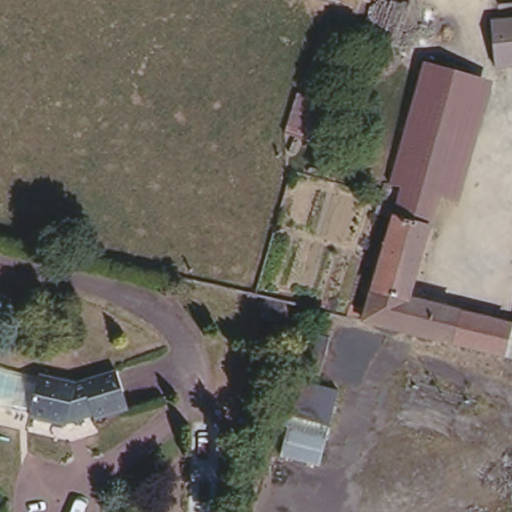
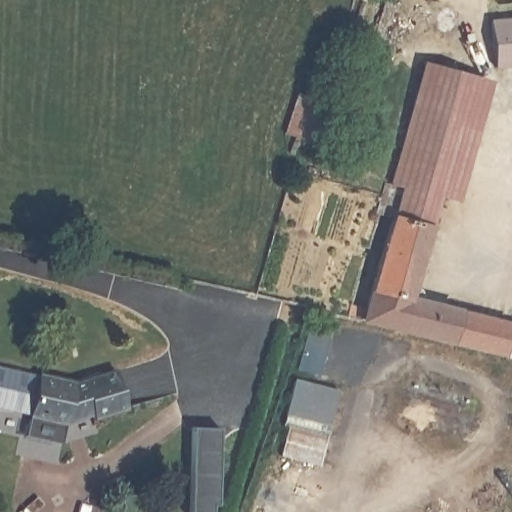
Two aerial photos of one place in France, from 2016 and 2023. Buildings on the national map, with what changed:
unchanged [(491,64),(483,16),(512,12),(512,61),(491,64)]
unchanged [(441,177),(396,169),(426,58),(496,78),(463,200),(437,192),(441,177)]
unchanged [(336,102),(324,143),(286,133),(298,90),(336,102)]
unchanged [(402,194),(390,190),(396,169),(441,177),(412,285),(431,287),(427,299),(457,302),(445,340),(369,322),(402,194)]
unchanged [(290,301),(285,315),(265,311),(269,295),(290,301)]
unchanged [(457,302),(512,316),(512,333),(507,353),(445,340),(457,302)]
unchanged [(310,324),(334,330),(324,372),(299,366),(310,324)]
unchanged [(512,333),(512,355),(507,353),(512,333)]
unchanged [(113,365),(129,403),(79,422),(23,410),(0,406),(0,363),(75,377),(113,365)]
unchanged [(338,384),(326,422),(280,410),(294,374),(338,384)]
unchanged [(329,434),(322,463),(283,454),(291,425),(329,434)]
new [(223,426),(221,501),(215,502),(216,512),(189,512),(192,426),(223,426)]

